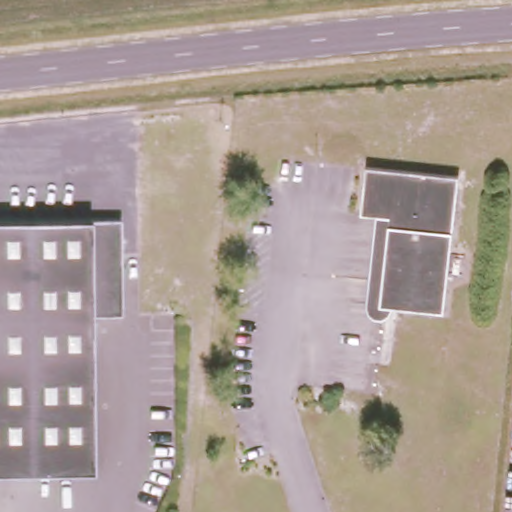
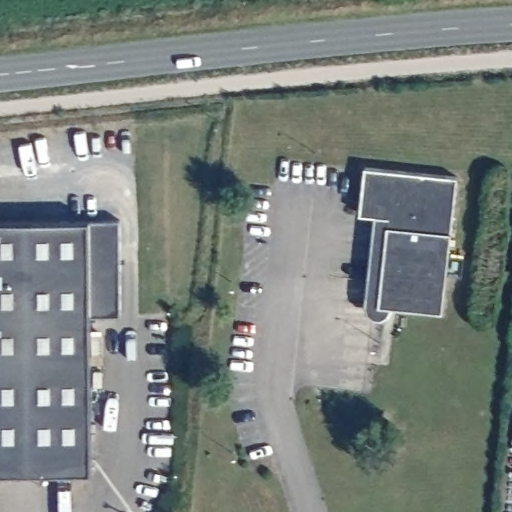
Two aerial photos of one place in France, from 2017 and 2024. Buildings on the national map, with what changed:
unchanged [(374,217),(357,216),(361,167),(465,176),(445,323),(386,317),(385,324),(362,321),(374,217)]
unchanged [(87,223),(118,223),(119,320),(91,320),(91,473),(0,475),(0,224),(87,223)]

